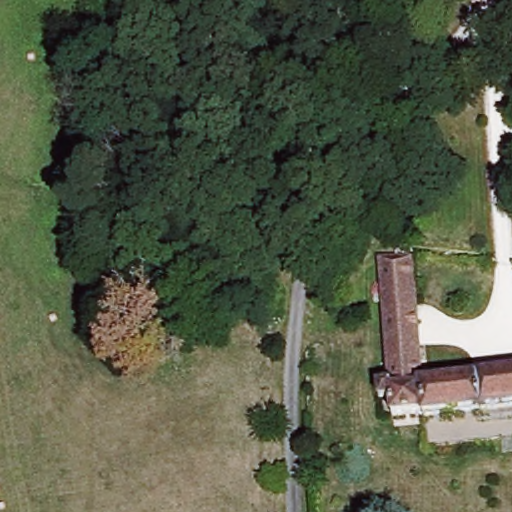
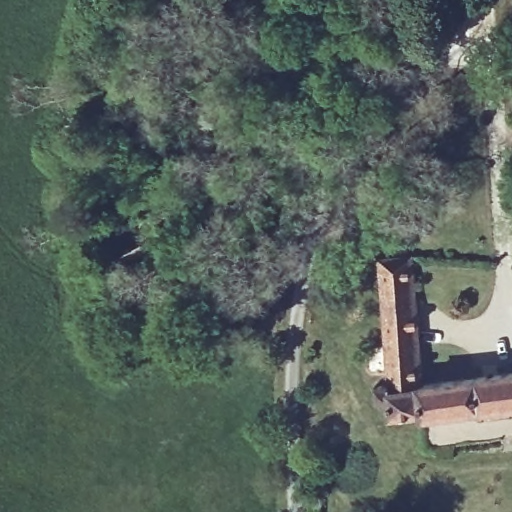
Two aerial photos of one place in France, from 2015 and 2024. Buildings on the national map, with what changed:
unchanged [(512,407),(472,412),(400,413),(398,401),(381,400),(379,377),(398,377),(395,319),(392,263),(425,263),(428,376),(471,374),(512,370),(512,407)]

